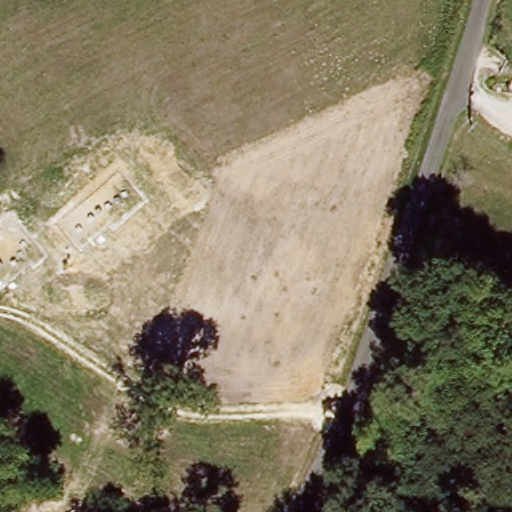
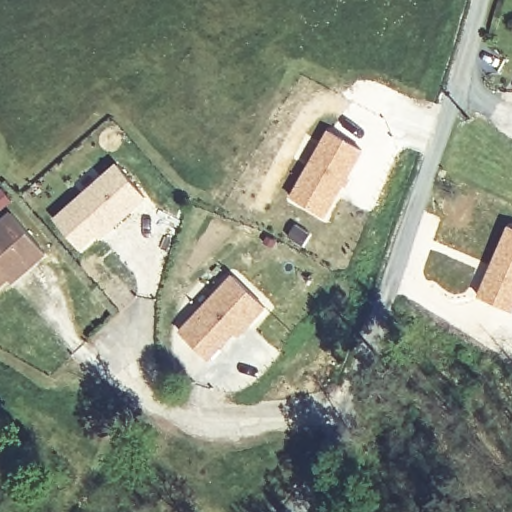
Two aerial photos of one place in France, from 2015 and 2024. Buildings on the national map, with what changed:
new [(365,150),(330,218),(293,197),(310,164),(295,154),(307,134),(322,143),(330,130),(365,150)]
new [(55,219),(117,163),(149,198),(103,239),(99,235),(82,250),(55,219)]
new [(49,256),(16,285),(11,280),(0,290),(0,222),(12,211),(49,256)]
new [(508,222),(512,224),(512,310),(478,296),(508,222)]
new [(242,336),(239,333),(210,361),(180,332),(232,275),(267,308),(242,336)]

